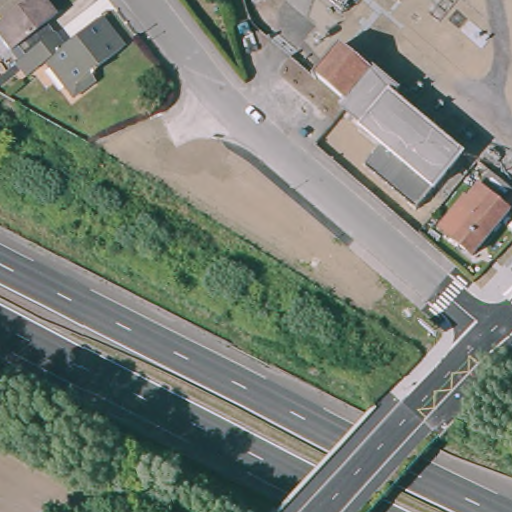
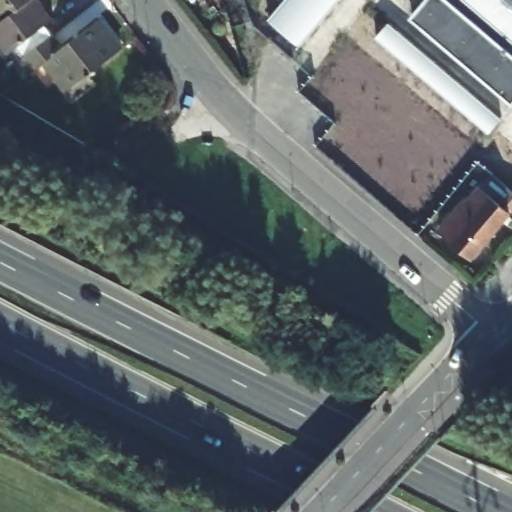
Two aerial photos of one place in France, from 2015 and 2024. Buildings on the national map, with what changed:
unchanged [(0,23),(0,0),(30,0),(0,24),(0,23)]
unchanged [(32,0),(50,22),(41,29),(49,38),(20,61),(12,51),(4,58),(0,53),(0,24),(30,0),(32,0)]
new [(269,20),(286,0),(338,0),(299,46),(269,20)]
new [(412,17),(427,0),(512,0),(512,103),(412,17)]
new [(503,116),(488,134),(375,39),(390,21),(503,116)]
unchanged [(59,51),(95,22),(117,52),(85,79),(90,85),(70,101),(41,65),(30,75),(20,61),(49,38),(59,51)]
unchanged [(436,188),(435,187),(412,214),(362,170),(383,146),(363,130),(366,126),(343,107),(348,101),(318,76),(340,51),(367,74),(372,69),(400,92),(395,99),(463,157),(436,188)]
unchanged [(512,191),(512,206),(472,255),(438,229),(465,196),(468,200),(490,173),(512,191)]

